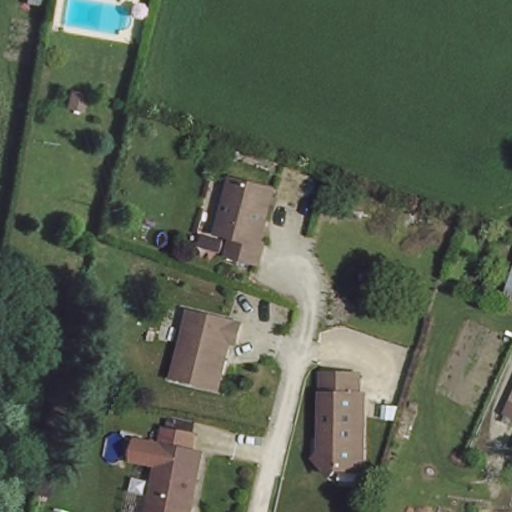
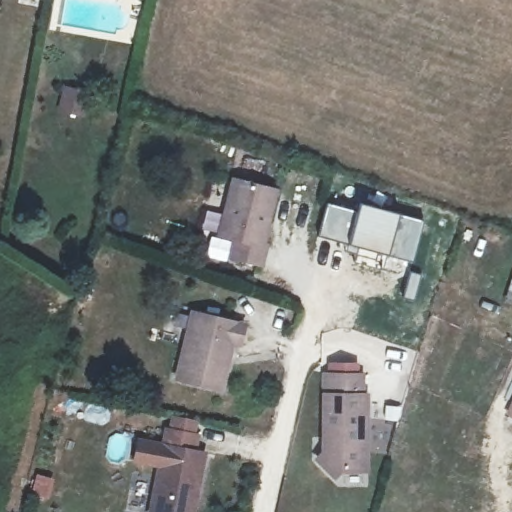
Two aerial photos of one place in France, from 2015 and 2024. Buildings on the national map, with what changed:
unchanged [(231,239),(216,236),(230,181),(271,192),(258,245),(262,246),(256,265),(227,258),(231,239)]
new [(326,202),(356,209),(348,244),(316,236),(326,202)]
new [(356,209),(358,203),(423,220),(412,262),(348,244),(356,209)]
unchanged [(173,374),(188,308),(240,319),(237,339),(228,337),(217,384),(173,374)]
unchanged [(363,372),(364,393),(368,393),(364,467),(340,467),(334,473),(316,457),(326,445),(327,441),(326,438),(324,435),(328,371),(363,372)]
unchanged [(512,399),(512,419),(504,414),(512,399)]
unchanged [(194,431),(192,446),(201,448),(190,512),(145,512),(164,425),(194,431)]

